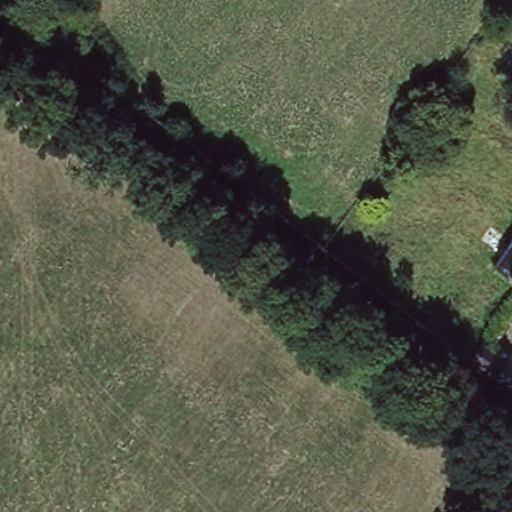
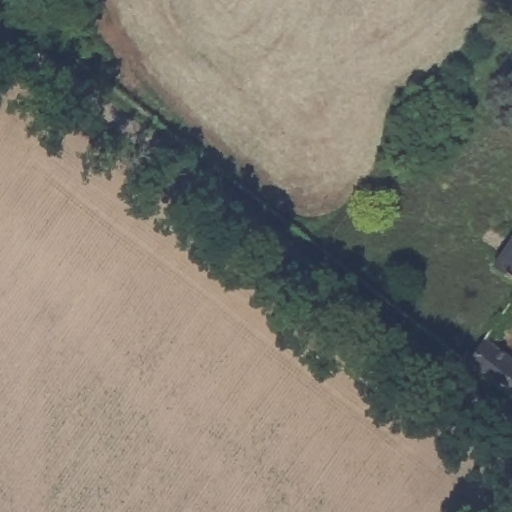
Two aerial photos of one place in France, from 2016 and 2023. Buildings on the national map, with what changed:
unchanged [(512,232),(512,279),(491,263),(512,232)]
unchanged [(512,350),(512,394),(467,359),(486,330),(512,350)]

